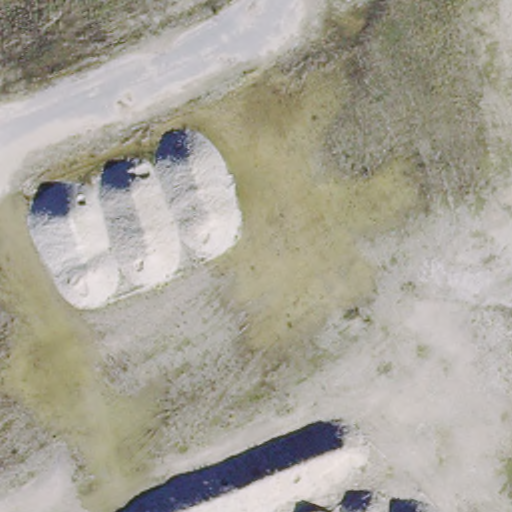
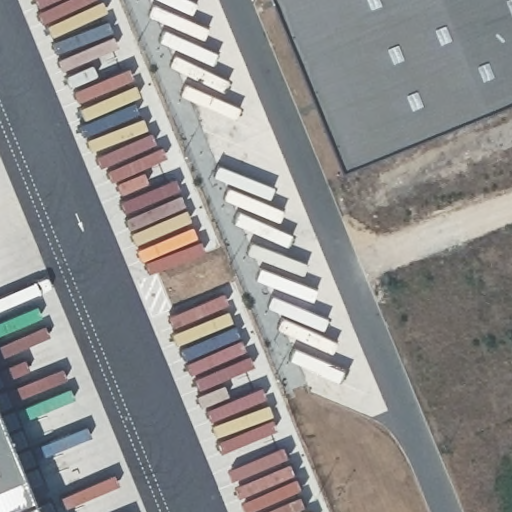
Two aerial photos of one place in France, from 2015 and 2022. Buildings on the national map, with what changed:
new [(350,160),(285,0),(512,0),(512,94),(350,160)]
new [(0,512),(0,249),(112,512),(0,512)]

